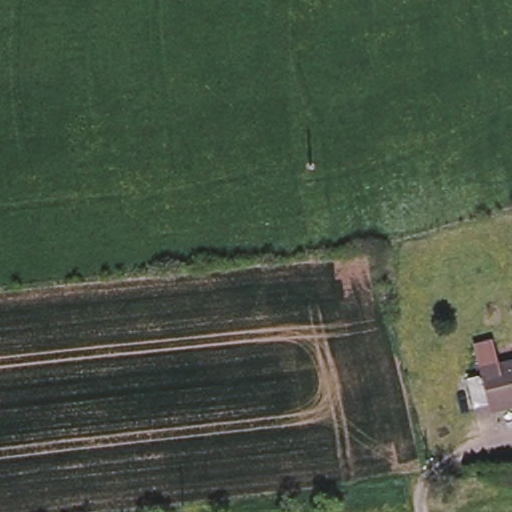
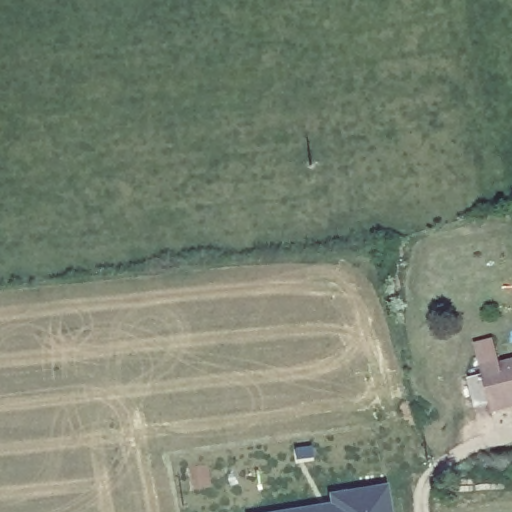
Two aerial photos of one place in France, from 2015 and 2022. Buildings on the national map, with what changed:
unchanged [(489,402),(474,405),(468,376),(482,372),(481,366),(512,359),(512,404),(491,409),(489,402)]
new [(389,512),(297,512),(333,507),(332,498),(385,489),(389,512)]

